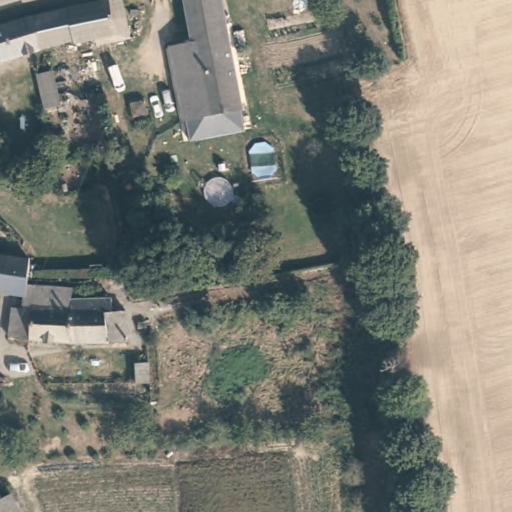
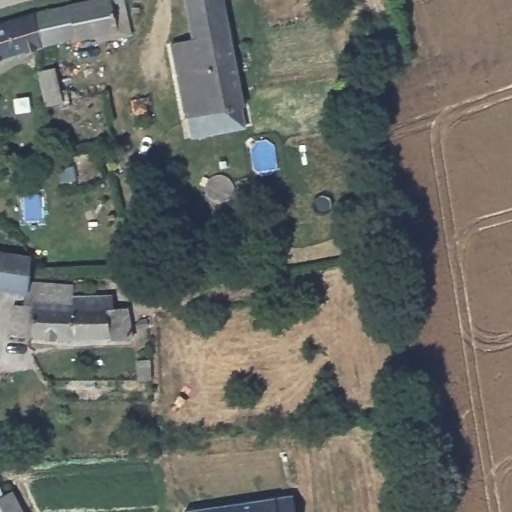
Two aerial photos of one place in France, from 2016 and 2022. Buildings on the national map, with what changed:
unchanged [(73,38),(43,46),(37,16),(105,0),(118,0),(125,29),(75,43),(73,38)]
unchanged [(231,105),(183,114),(169,43),(193,38),(186,0),(225,0),(245,97),(246,101),(231,105)]
unchanged [(0,58),(0,20),(6,17),(12,21),(37,16),(43,46),(0,58)]
unchanged [(58,95),(46,97),(41,68),(53,66),(58,95)]
unchanged [(27,294),(0,290),(0,255),(30,259),(29,278),(27,294)]
unchanged [(127,339),(72,341),(23,336),(27,294),(29,278),(51,282),(51,285),(75,295),(75,301),(108,301),(108,310),(116,310),(116,299),(119,297),(124,297),(128,298),(129,313),(133,313),(134,338),(127,339)]
unchanged [(152,358),(154,378),(132,380),(131,359),(152,358)]
unchanged [(9,512),(2,498),(14,491),(26,512),(8,512),(9,512)]
unchanged [(8,512),(0,512),(0,494),(2,498),(9,512),(8,512)]
new [(295,512),(184,512),(183,510),(292,495),(295,512)]

